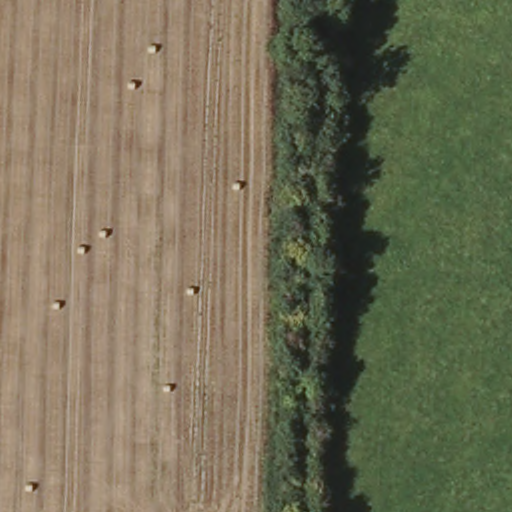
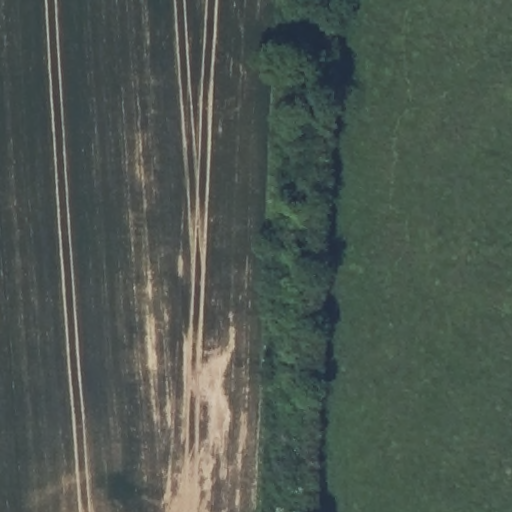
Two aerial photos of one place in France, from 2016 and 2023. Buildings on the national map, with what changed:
[]

